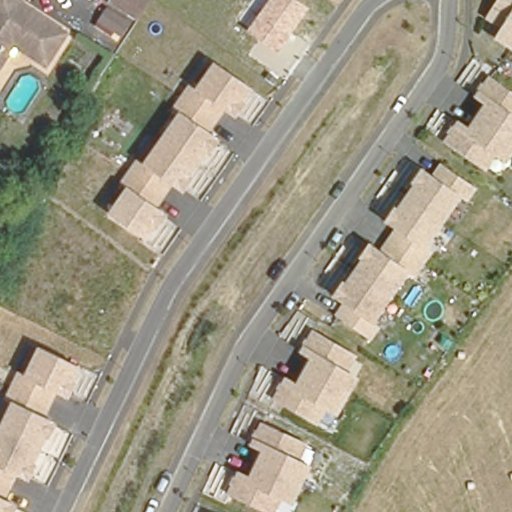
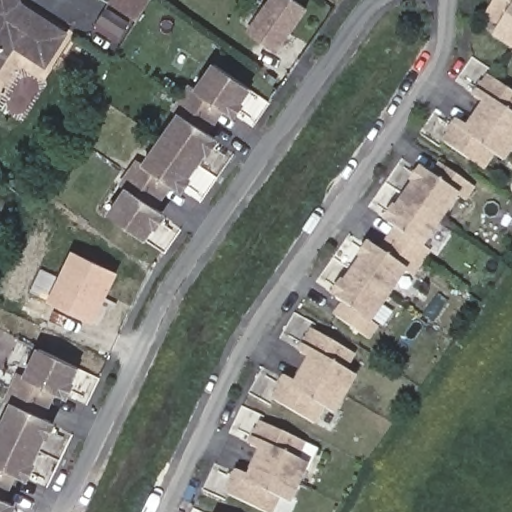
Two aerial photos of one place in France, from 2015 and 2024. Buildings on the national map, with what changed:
unchanged [(64,40),(44,73),(11,52),(0,69),(0,0),(14,0),(17,10),(64,40)]
unchanged [(106,0),(148,0),(136,19),(106,0)]
unchanged [(247,30),(268,0),(297,0),(309,8),(279,52),(247,30)]
unchanged [(493,41),(500,29),(486,21),(499,0),(512,0),(512,51),(493,41)]
new [(106,8),(130,21),(121,37),(96,23),(106,8)]
unchanged [(236,117),(226,111),(209,133),(220,140),(186,192),(174,185),(160,208),(169,214),(150,242),(107,217),(126,190),(118,185),(135,159),(145,163),(177,115),(171,111),(189,83),(197,88),(212,64),(254,90),(236,117)]
unchanged [(508,160),(497,155),(486,170),(445,139),(457,118),(467,125),(485,103),(472,95),(487,76),(512,92),(512,156),(508,160)]
unchanged [(333,315),(342,300),(332,295),(371,241),(383,246),(395,227),(385,221),(423,167),(433,174),(440,162),(477,187),(467,204),(460,200),(426,248),(436,251),(417,279),(409,273),(373,323),(381,327),(372,340),(333,315)]
new [(72,251),(117,273),(106,297),(117,303),(115,308),(110,305),(100,326),(47,300),(72,251)]
unchanged [(351,371),(360,377),(340,413),(329,409),(320,425),(273,397),(285,376),(296,381),(309,359),(299,352),(312,329),(357,357),(351,371)]
unchanged [(55,393),(45,416),(56,421),(30,479),(17,476),(6,500),(17,504),(13,512),(0,512),(0,430),(12,403),(3,400),(17,371),(27,374),(40,347),(82,368),(69,397),(55,393)]
unchanged [(301,458),(313,464),(295,502),(283,498),(276,512),(266,512),(226,493),(238,467),(252,473),(262,450),(247,442),(260,421),(308,444),(301,458)]

